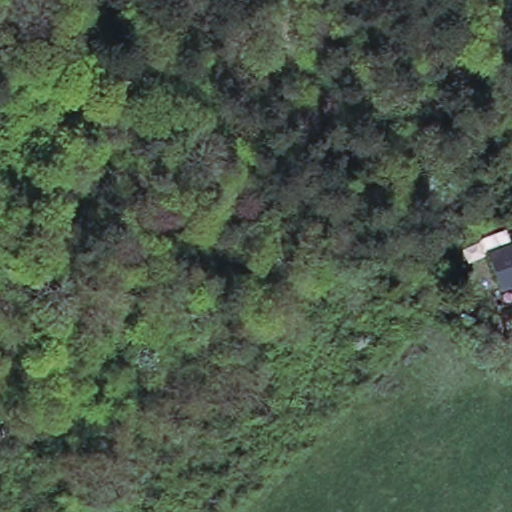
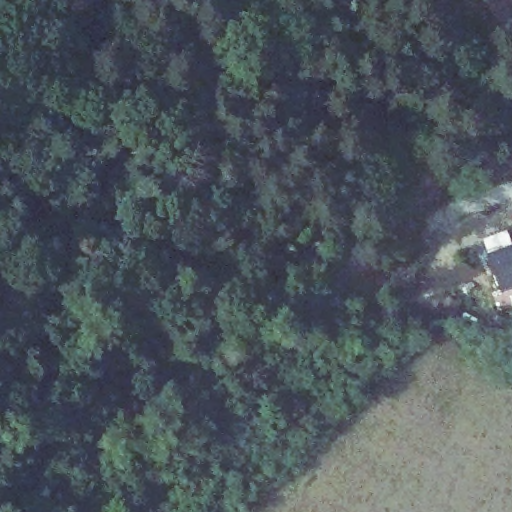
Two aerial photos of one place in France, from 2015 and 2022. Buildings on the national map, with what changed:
unchanged [(512,248),(512,280),(503,251),(512,248)]

